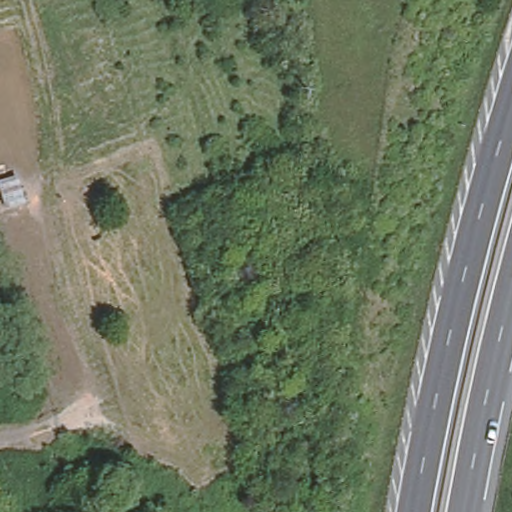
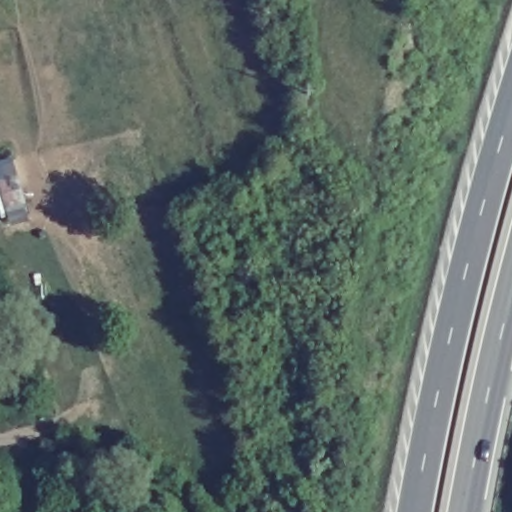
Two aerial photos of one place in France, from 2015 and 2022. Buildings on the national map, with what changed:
unchanged [(0,168),(0,105),(0,104),(9,166),(0,168)]

